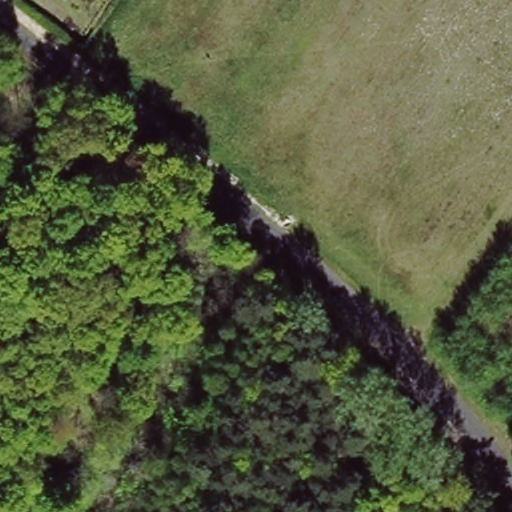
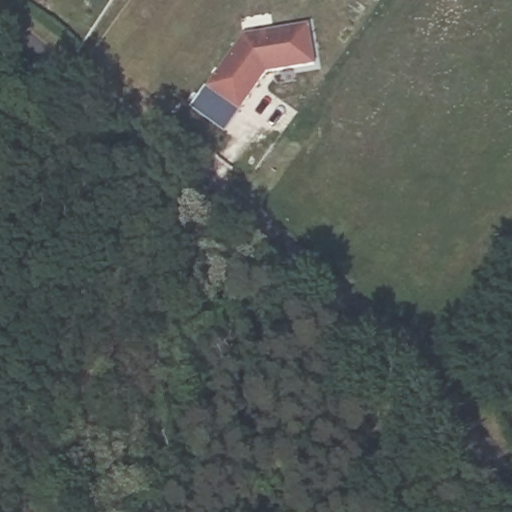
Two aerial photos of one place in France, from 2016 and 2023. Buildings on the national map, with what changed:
new [(270,74),(241,113),(208,89),(245,37),(311,25),(318,64),(270,74)]
new [(208,88),(240,111),(225,131),(205,117),(192,109),(204,93),(208,88)]

